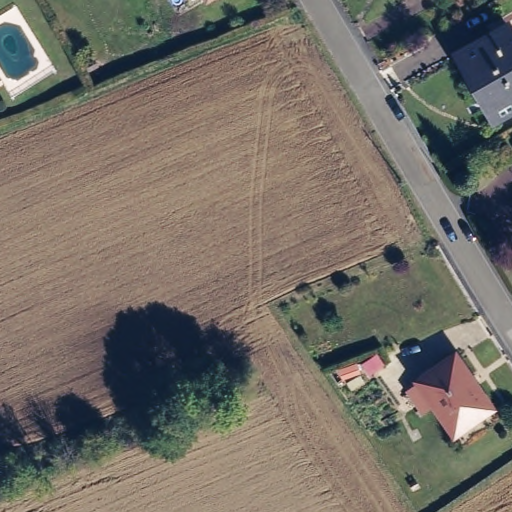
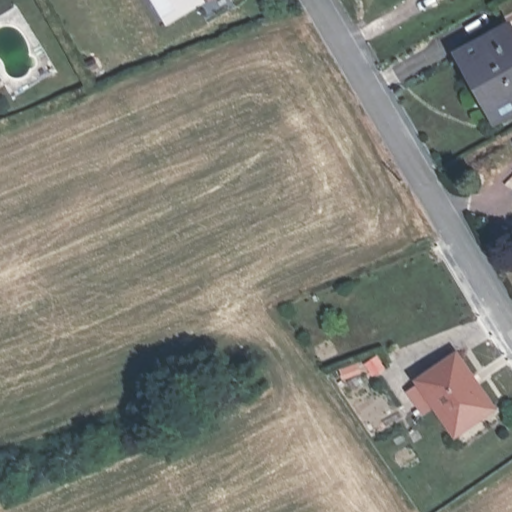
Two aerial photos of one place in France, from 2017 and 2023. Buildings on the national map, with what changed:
unchanged [(491,119),(454,53),(502,26),(512,44),(512,107),(491,119)]
unchanged [(501,408),(482,421),(480,418),(462,430),(428,381),(465,355),(501,408)]

